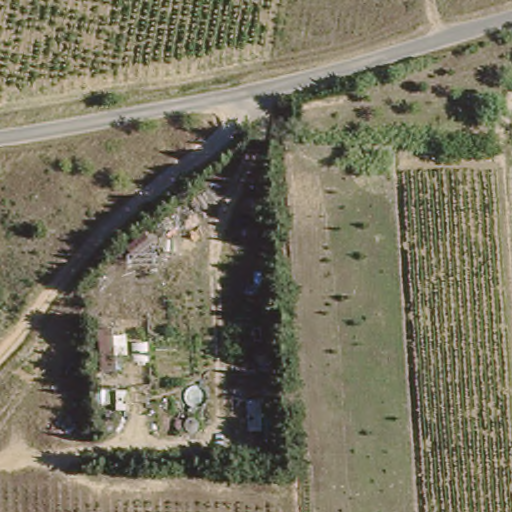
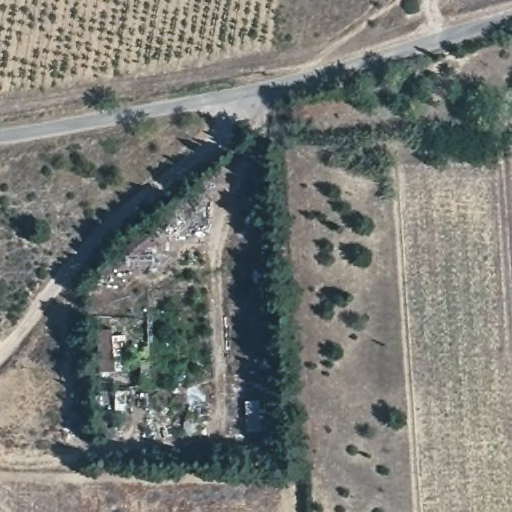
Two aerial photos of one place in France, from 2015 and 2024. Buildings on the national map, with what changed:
[]

